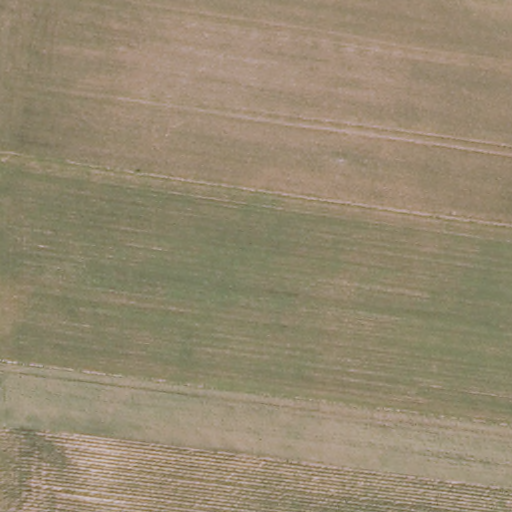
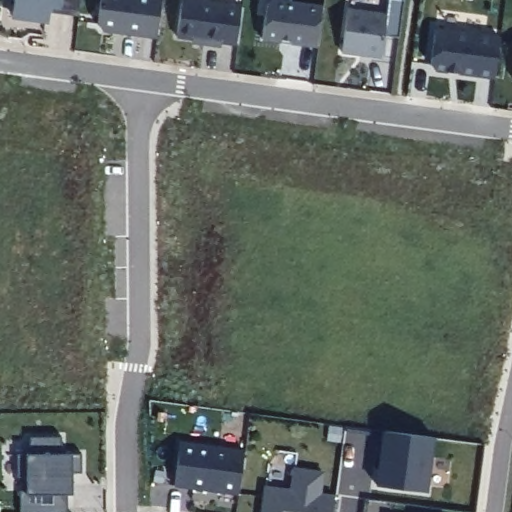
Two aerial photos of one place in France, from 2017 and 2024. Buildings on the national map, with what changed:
new [(51,11),(50,22),(15,17),(17,0),(81,0),(79,15),(51,11)]
new [(103,31),(97,24),(100,0),(161,0),(156,37),(103,31)]
new [(236,45),(221,44),(221,46),(203,45),(204,41),(176,37),(181,0),(185,0),(241,7),(236,45)]
new [(316,46),(290,43),(291,40),(280,39),(280,42),(261,40),(266,3),(270,0),(278,0),(321,7),(316,46)]
new [(387,14),(381,57),(342,53),(347,8),(387,14)]
new [(499,37),(494,77),(435,70),(431,65),(435,29),(499,37)]
new [(433,437),(426,492),(376,485),(381,448),(376,447),(378,429),(433,437)]
new [(61,437),(61,455),(81,455),(81,473),(71,473),(71,495),(67,496),(67,512),(20,512),(20,492),(27,492),(27,477),(17,477),(16,455),(30,455),(30,437),(61,437)]
new [(244,452),(238,495),(175,486),(179,444),(244,452)]
new [(381,448),(378,467),(373,467),(376,447),(381,448)]
new [(322,472),(320,495),(334,497),(332,512),(262,512),(265,487),(291,490),(294,469),(322,472)]

